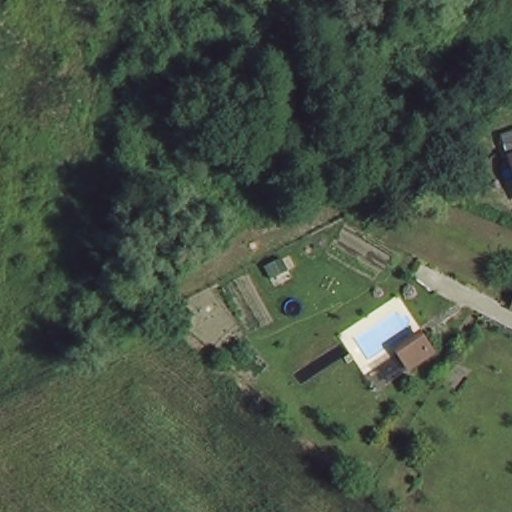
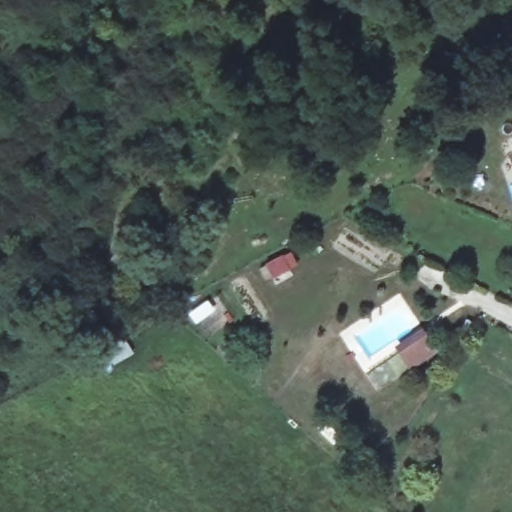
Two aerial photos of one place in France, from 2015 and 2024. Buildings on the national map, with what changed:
unchanged [(409,373),(392,347),(423,329),(438,354),(409,373)]

